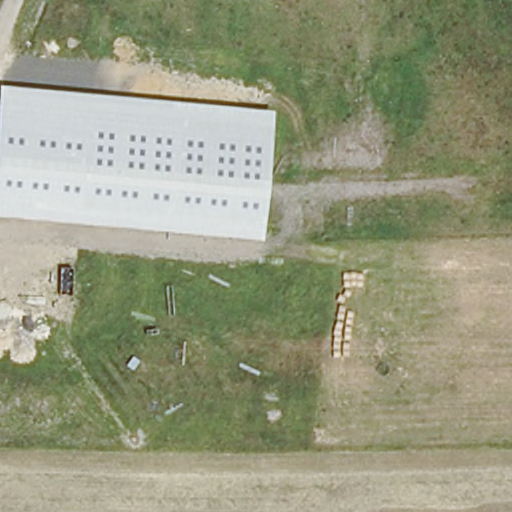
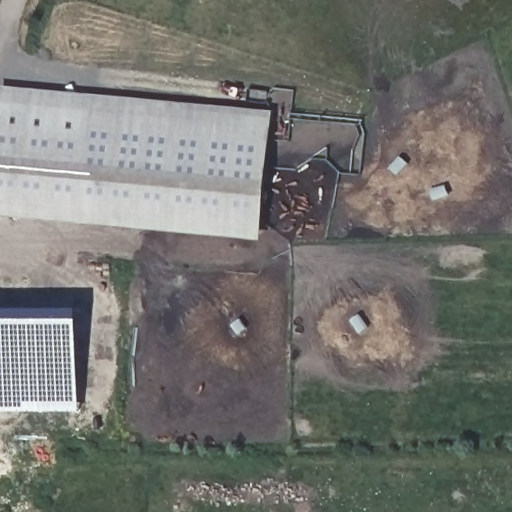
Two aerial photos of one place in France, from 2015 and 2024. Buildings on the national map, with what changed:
unchanged [(262,241),(0,217),(0,87),(273,111),(262,241)]
new [(78,311),(79,412),(0,412),(0,311),(78,311)]

